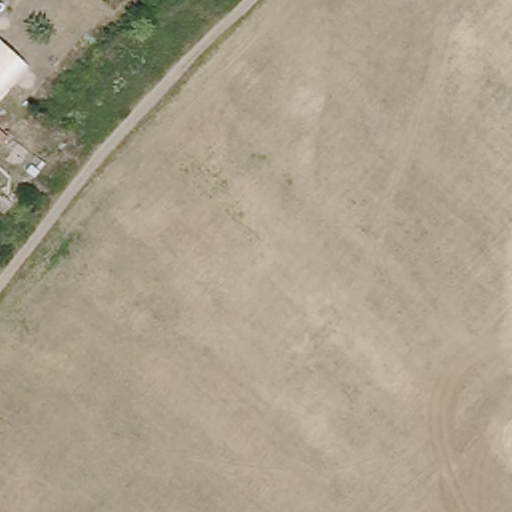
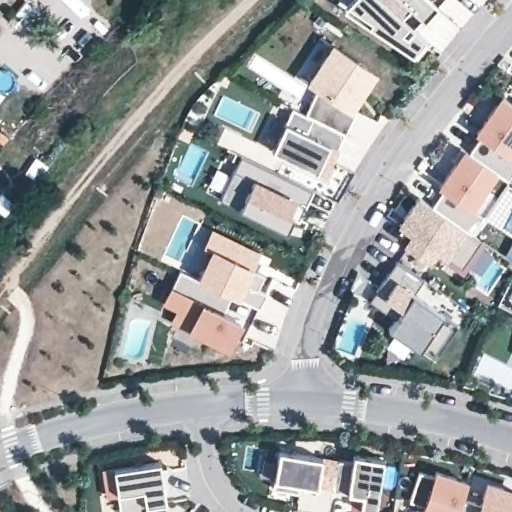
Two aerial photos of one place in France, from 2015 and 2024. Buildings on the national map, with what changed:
new [(414,30),(425,39),(412,54),(344,9),(351,0),(430,0),(439,8),(426,21),(423,19),(414,30)]
new [(332,43),(377,72),(350,110),(355,112),(345,132),(306,114),(320,90),(307,81),(332,43)]
new [(478,133),(474,130),(499,94),(512,103),(512,152),(510,155),(512,156),(512,176),(509,180),(496,172),(466,150),(478,133)]
new [(306,114),(345,132),(324,176),(271,150),(292,107),(306,114)]
new [(497,171),(472,207),(484,215),(471,233),(429,204),(441,187),(437,184),(462,147),(466,150),(497,171)]
new [(294,215),(287,230),(220,199),(241,155),(313,190),(306,205),(300,218),(294,215)]
new [(471,233),(485,243),(466,270),(440,252),(431,266),(406,249),(420,229),(415,235),(400,224),(404,218),(419,197),(429,204),(471,233)]
new [(210,248),(203,244),(210,229),(256,251),(249,266),(262,272),(255,286),(264,291),(257,306),(197,277),(210,248)]
new [(422,278),(412,294),(457,325),(435,357),(390,327),(396,317),(371,300),(397,260),(422,278)]
new [(231,295),(224,312),(241,320),(228,350),(169,322),(175,310),(161,303),(179,271),(231,295)]
new [(323,456),(317,487),(299,483),(298,492),(273,487),(278,450),(323,456)]
new [(338,458),(352,461),(353,455),(384,460),(375,510),(352,506),(354,493),(333,491),(338,458)]
new [(142,512),(124,512),(119,508),(115,493),(105,495),(100,468),(112,467),(112,468),(158,462),(164,501),(145,505),(142,512)]
new [(422,502),(407,497),(416,470),(432,475),(434,468),(466,478),(461,498),(457,512),(420,512),(422,502)]
new [(461,498),(478,502),(486,478),(512,487),(512,512),(457,512),(461,498)]

